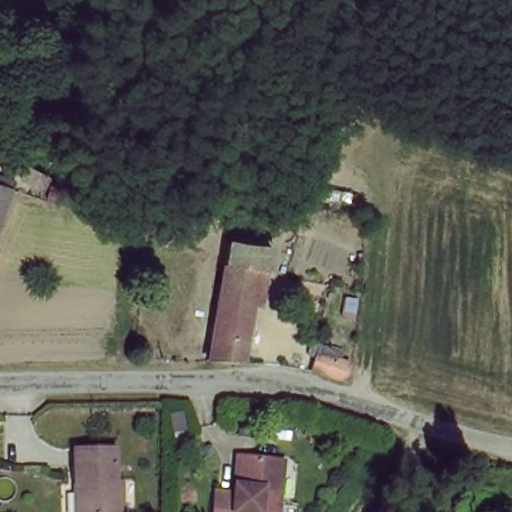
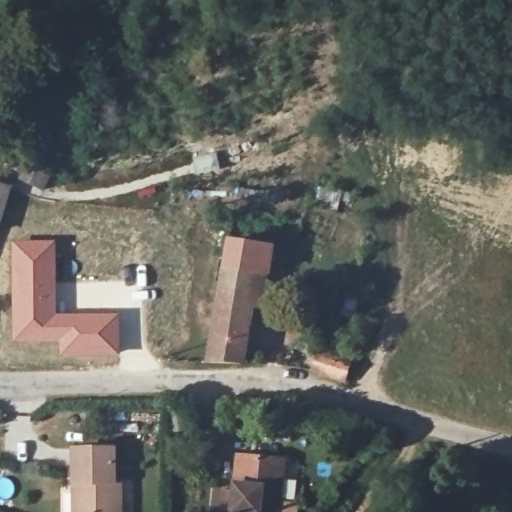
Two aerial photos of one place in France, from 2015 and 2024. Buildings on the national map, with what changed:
new [(19,180),(26,166),(51,179),(49,183),(60,188),(53,202),(42,196),(19,180)]
unchanged [(13,189),(18,190),(2,232),(0,231),(0,185),(10,189),(13,189)]
unchanged [(278,244),(268,287),(258,285),(240,365),(211,361),(219,324),(238,238),(278,244)]
new [(10,239),(56,240),(56,314),(120,313),(120,357),(58,357),(57,344),(10,344),(10,239)]
unchanged [(310,370),(317,343),(348,356),(348,363),(342,381),(310,370)]
unchanged [(73,472),(78,472),(79,451),(114,453),(113,485),(120,486),(118,512),(72,512),(73,472)]
unchanged [(280,512),(216,512),(220,489),(241,491),(245,456),(255,457),(286,459),(280,512)]

